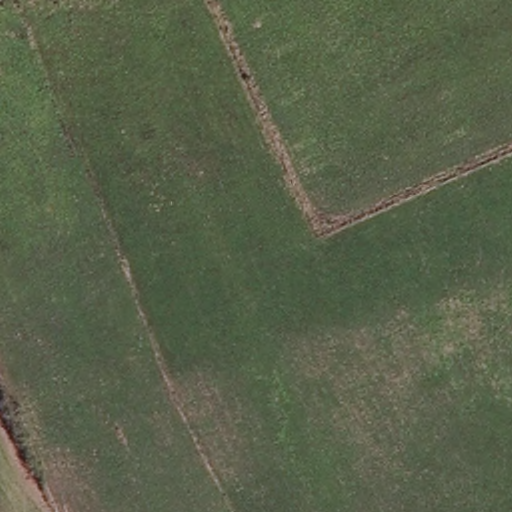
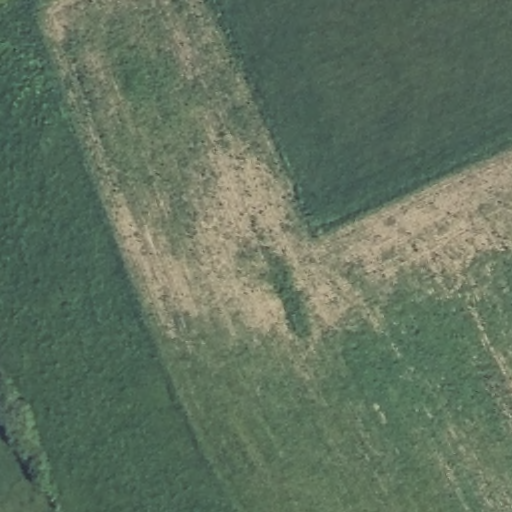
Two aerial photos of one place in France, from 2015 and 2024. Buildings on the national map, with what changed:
[]

